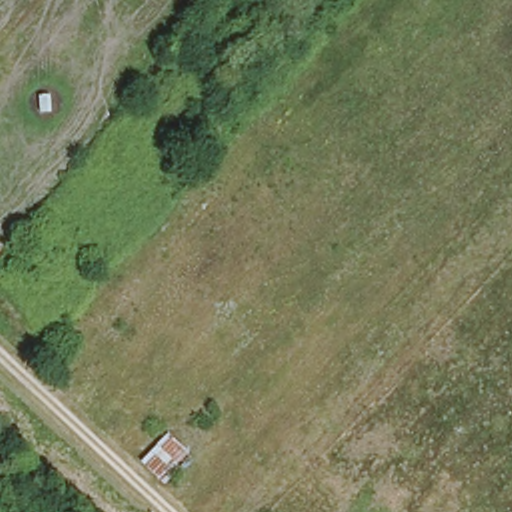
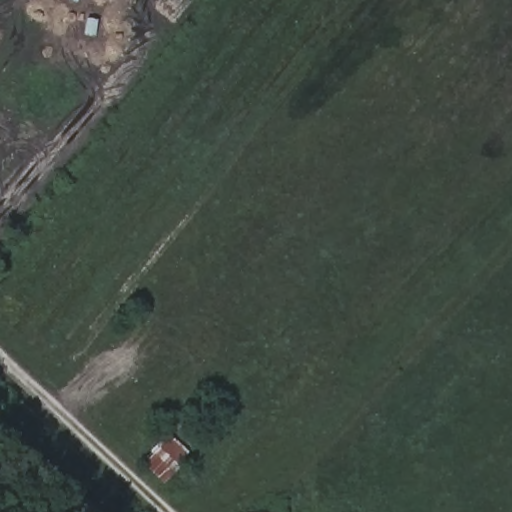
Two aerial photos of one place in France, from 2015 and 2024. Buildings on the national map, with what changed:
unchanged [(170,432),(198,454),(166,485),(144,464),(170,432)]

